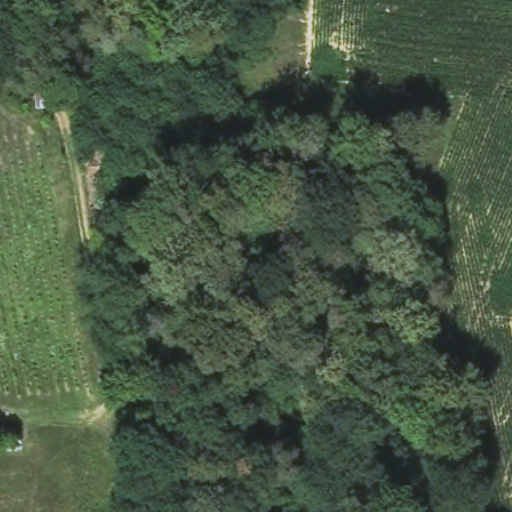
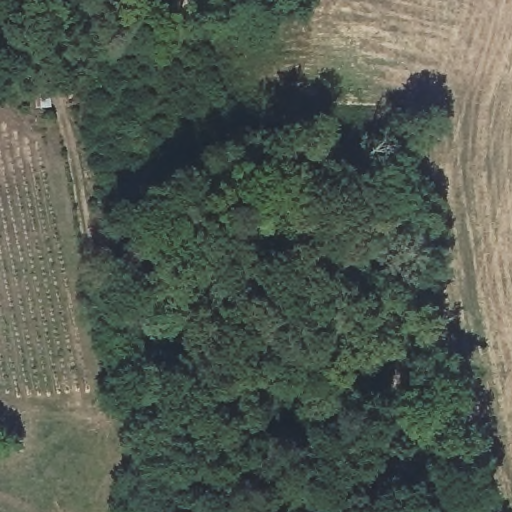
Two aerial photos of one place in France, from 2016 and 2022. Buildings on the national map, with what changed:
unchanged [(18,424),(18,443),(0,443),(0,425),(18,424)]

